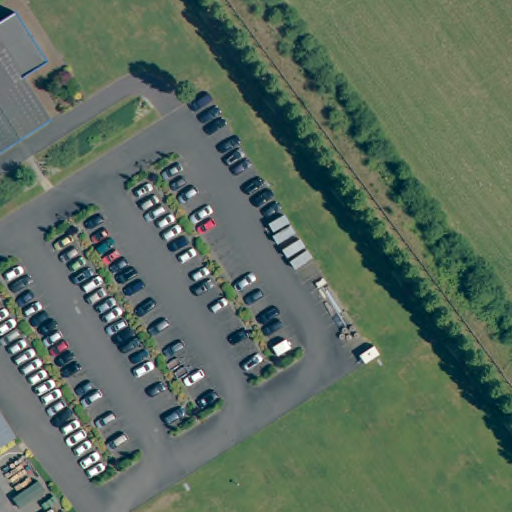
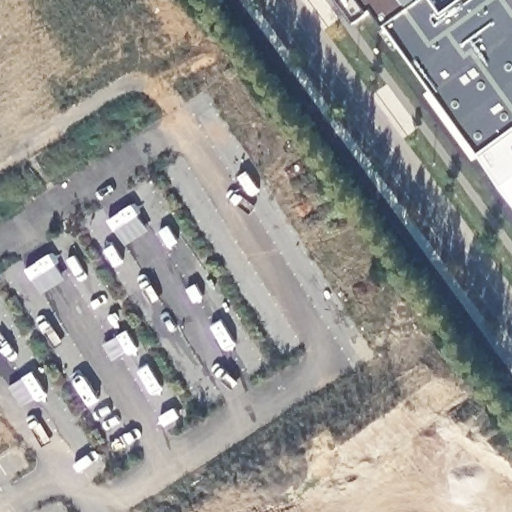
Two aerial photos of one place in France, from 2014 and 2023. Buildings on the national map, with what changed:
new [(482,154),(392,26),(387,31),(375,12),(357,23),(340,0),(436,0),(444,12),(461,0),(512,0),(512,133),(482,154)]
unchanged [(46,64),(22,80),(48,121),(0,150),(0,22),(14,14),(46,64)]
unchanged [(0,451),(0,406),(20,439),(0,451)]

